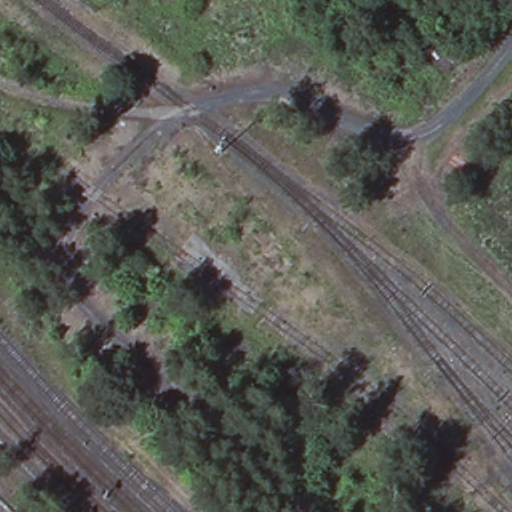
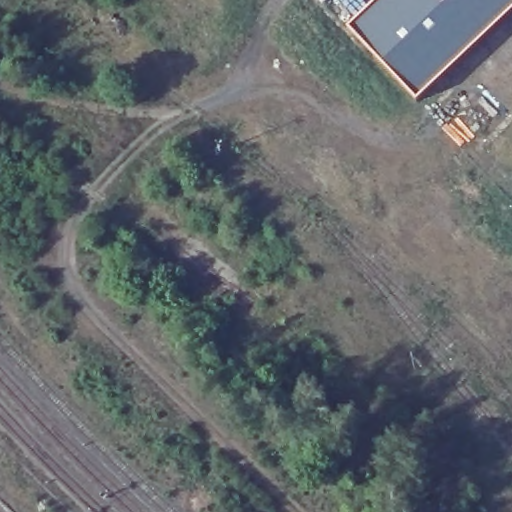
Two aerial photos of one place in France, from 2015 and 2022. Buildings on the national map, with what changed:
new [(416,102),(347,28),(377,0),(512,0),(512,11),(416,102)]

